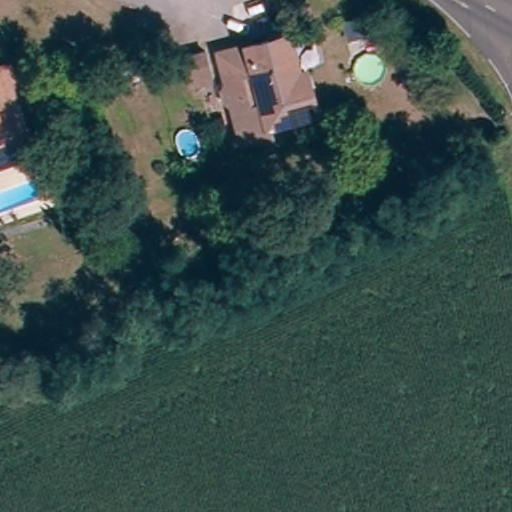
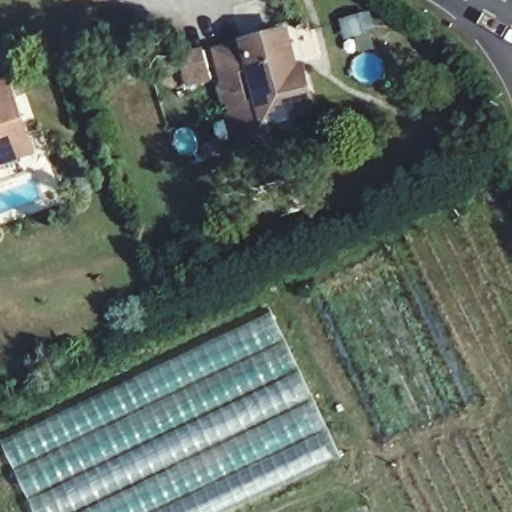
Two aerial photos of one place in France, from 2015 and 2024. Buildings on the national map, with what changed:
unchanged [(210,92),(221,88),(215,70),(211,57),(220,54),(291,31),(304,72),(318,67),(331,106),(268,126),(273,141),(242,151),(232,120),(220,124),(210,92)]
unchanged [(207,83),(185,90),(177,63),(198,57),(207,83)]
unchanged [(23,79),(11,84),(15,94),(0,99),(0,69),(16,64),(23,79)]
unchanged [(0,99),(15,94),(32,137),(39,156),(17,164),(0,169),(0,99)]
unchanged [(103,104),(92,107),(89,98),(100,95),(103,104)]
new [(274,313),(342,457),(229,512),(36,512),(3,443),(274,313)]

